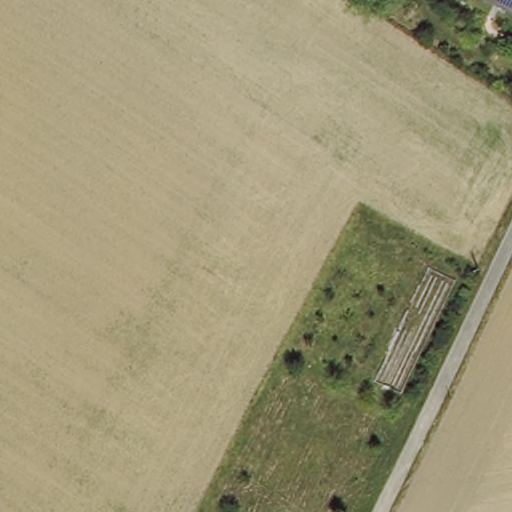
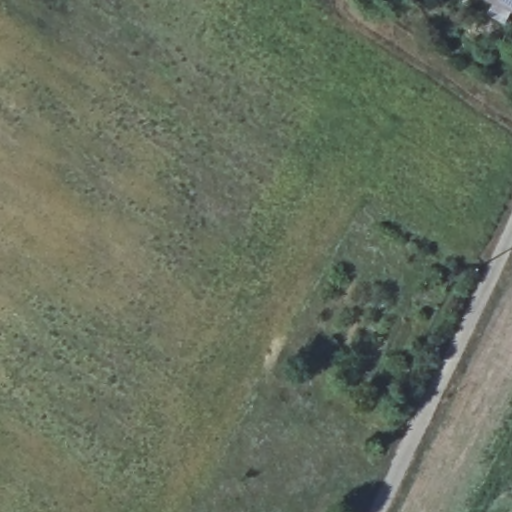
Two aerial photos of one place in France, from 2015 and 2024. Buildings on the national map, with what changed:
unchanged [(472,0),(512,0),(512,19),(472,0)]

